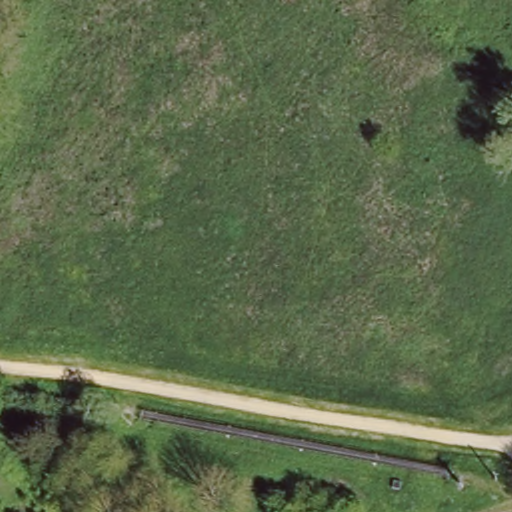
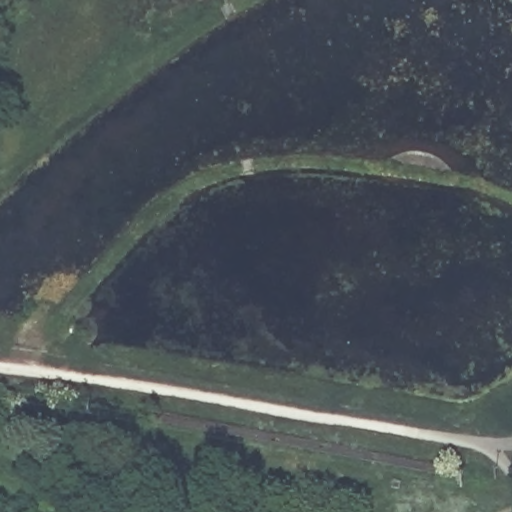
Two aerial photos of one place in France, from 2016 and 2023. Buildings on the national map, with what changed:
[]

